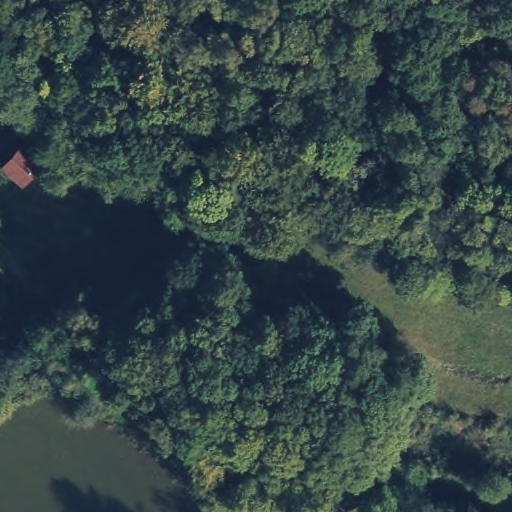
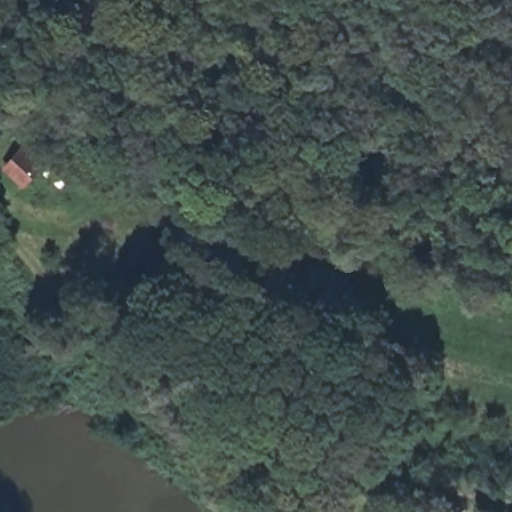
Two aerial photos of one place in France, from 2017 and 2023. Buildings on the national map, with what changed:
unchanged [(20,187),(2,166),(25,145),(46,165),(20,187)]

